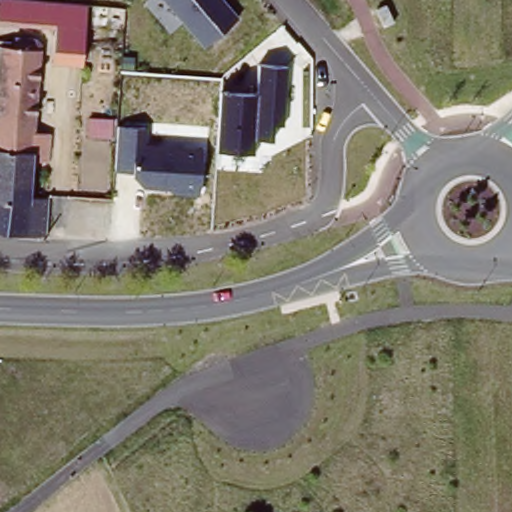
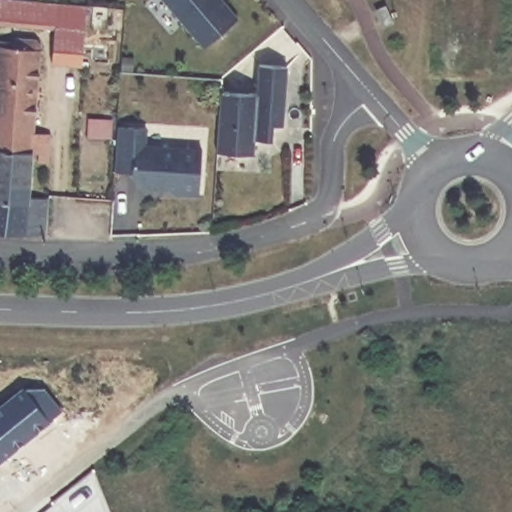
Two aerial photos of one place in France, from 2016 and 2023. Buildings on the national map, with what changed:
unchanged [(71,3),(88,5),(84,67),(54,65),(56,30),(0,26),(0,0),(34,0),(71,3)]
unchanged [(164,0),(225,0),(240,16),(203,45),(164,0)]
unchanged [(0,54),(0,48),(39,51),(32,131),(50,133),(47,161),(37,160),(37,152),(32,152),(0,149),(0,54)]
unchanged [(219,92),(257,95),(259,63),(287,65),(284,125),(274,126),(272,139),(255,138),(255,154),(214,153),(219,92)]
unchanged [(116,124),(147,126),(145,148),(201,151),(198,197),(170,195),(166,188),(140,187),(130,172),(112,170),(116,124)]
unchanged [(0,232),(0,149),(32,152),(30,184),(29,195),(42,196),(48,196),(47,216),(45,236),(22,235),(0,232)]
new [(0,463),(0,410),(25,390),(27,392),(30,390),(45,390),(63,413),(0,463)]

